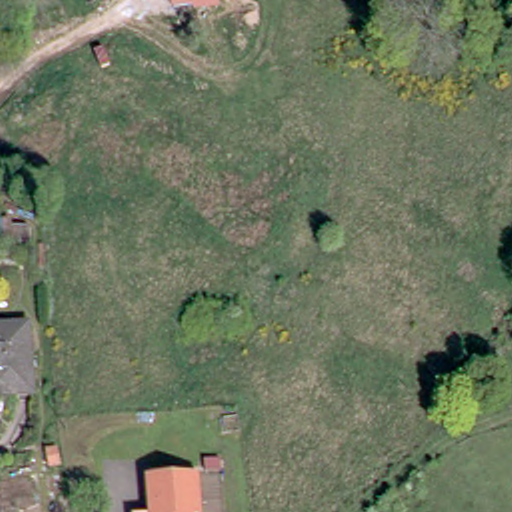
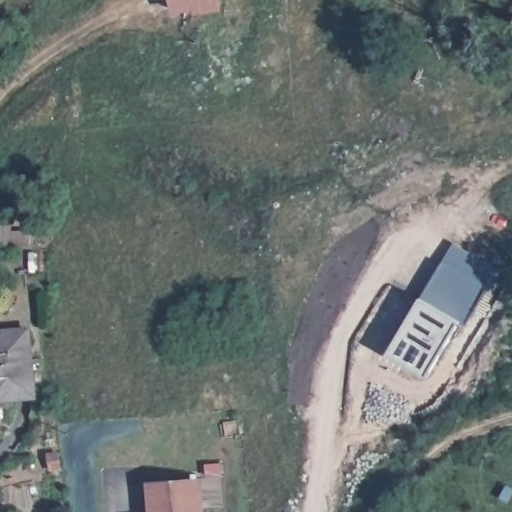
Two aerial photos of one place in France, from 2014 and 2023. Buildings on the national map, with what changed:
unchanged [(220,11),(194,15),(194,11),(172,14),(170,0),(219,0),(220,11)]
new [(0,248),(0,225),(11,225),(11,230),(30,230),(30,247),(0,248)]
new [(500,270),(465,327),(457,322),(427,377),(387,354),(419,298),(454,241),(500,270)]
unchanged [(0,403),(0,334),(15,331),(25,400),(0,403)]
unchanged [(152,512),(152,478),(202,480),(202,512),(152,512)]

